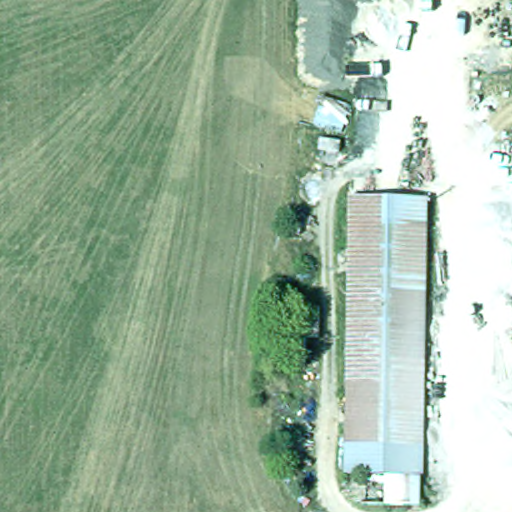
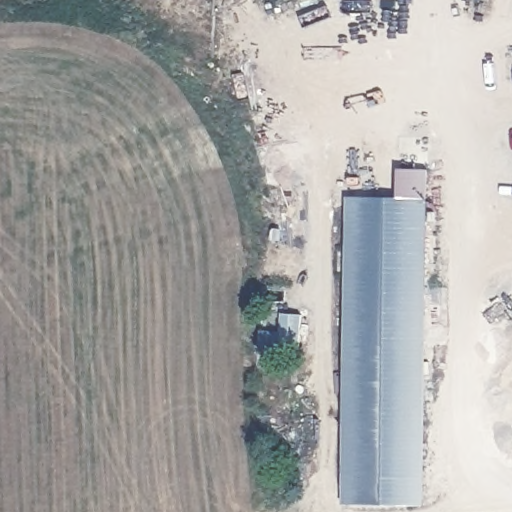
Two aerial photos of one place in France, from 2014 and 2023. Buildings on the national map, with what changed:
unchanged [(418,471),(343,471),(344,194),(420,197),(418,471)]
unchanged [(418,498),(343,497),(343,471),(418,471),(418,498)]

